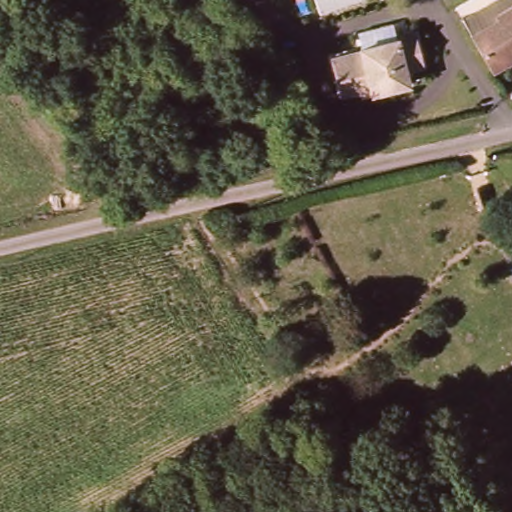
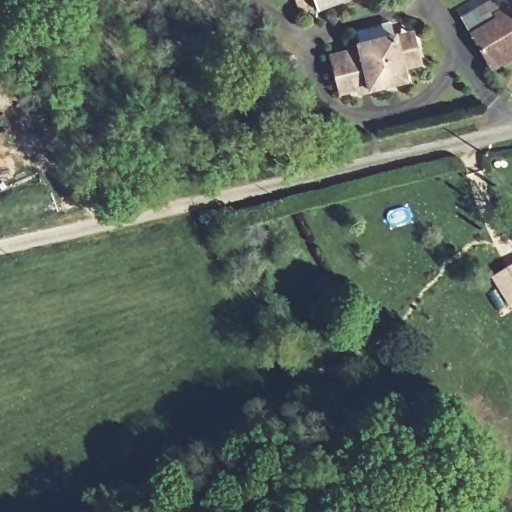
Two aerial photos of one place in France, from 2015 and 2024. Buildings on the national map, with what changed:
unchanged [(315,0),(350,0),(319,11),(315,0)]
unchanged [(478,71),(457,36),(482,21),(480,15),(506,0),(512,0),(512,42),(506,45),(511,52),(499,59),(478,71)]
unchanged [(357,86),(337,91),(328,56),(327,54),(356,47),(355,44),(361,42),(392,34),(410,29),(412,40),(417,61),(400,66),(403,79),(385,84),(366,88),(357,91),(357,86)]
new [(492,276),(512,265),(512,306),(511,306),(492,276)]

